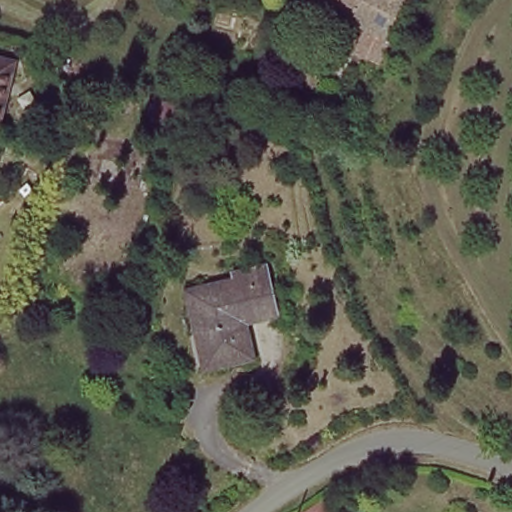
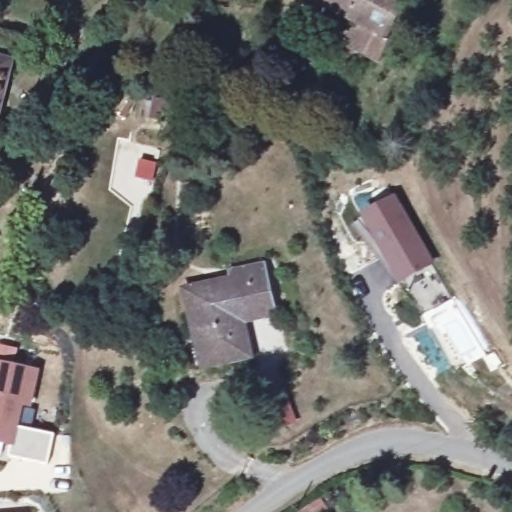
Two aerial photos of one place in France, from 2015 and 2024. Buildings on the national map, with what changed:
unchanged [(381,50),(303,15),(309,0),(376,0),(398,12),(381,50)]
unchanged [(398,12),(376,0),(405,0),(398,12)]
unchanged [(0,109),(0,63),(13,66),(0,109)]
new [(363,216),(397,196),(437,258),(404,284),(363,216)]
unchanged [(241,322),(248,361),(204,373),(187,295),(233,284),(230,274),(264,267),(276,312),(241,322)]
new [(0,443),(0,361),(41,369),(33,408),(24,406),(20,428),(54,436),(49,464),(10,456),(12,445),(0,443)]
new [(298,417),(271,433),(255,406),(282,391),(298,417)]
unchanged [(331,512),(299,512),(320,496),(331,512)]

